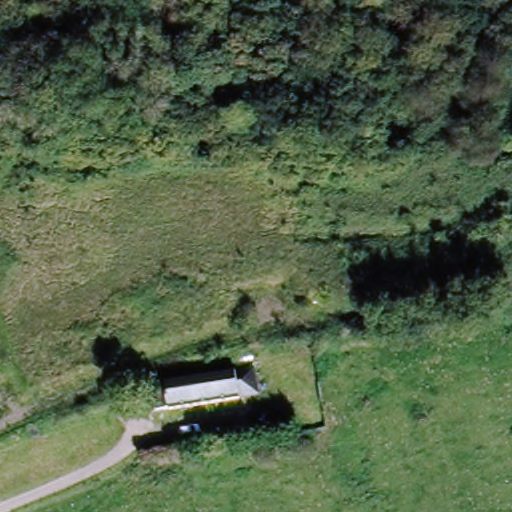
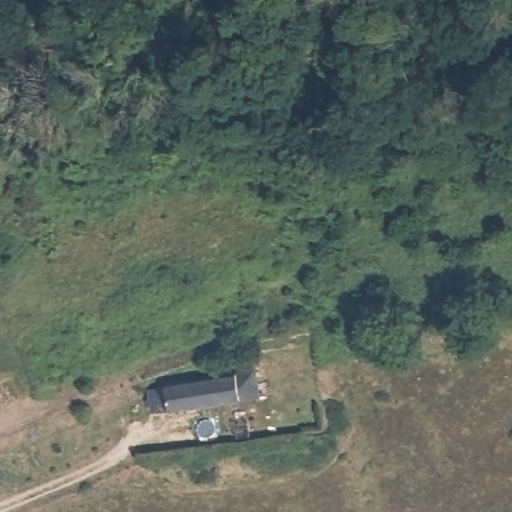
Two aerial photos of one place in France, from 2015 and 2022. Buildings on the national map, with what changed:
unchanged [(164,396),(176,394),(175,385),(243,375),(261,372),(265,400),(247,402),(167,415),(164,396)]

